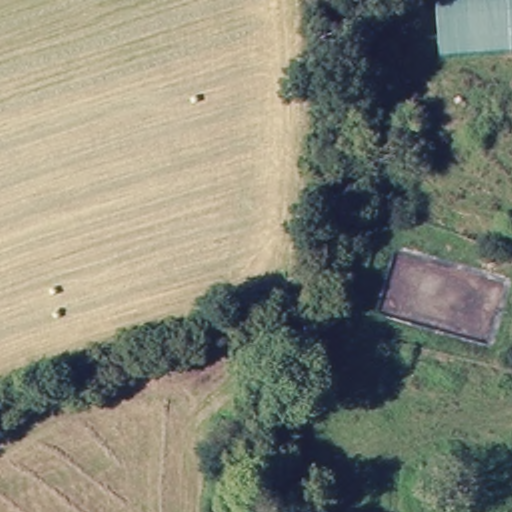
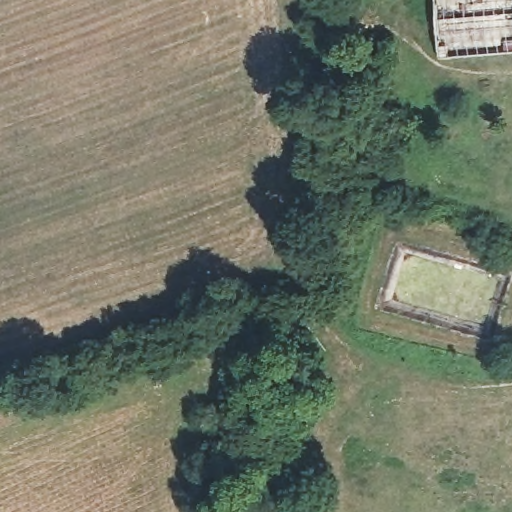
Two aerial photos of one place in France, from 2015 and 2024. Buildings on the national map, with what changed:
unchanged [(436,0),(512,0),(512,58),(438,65),(436,0)]

